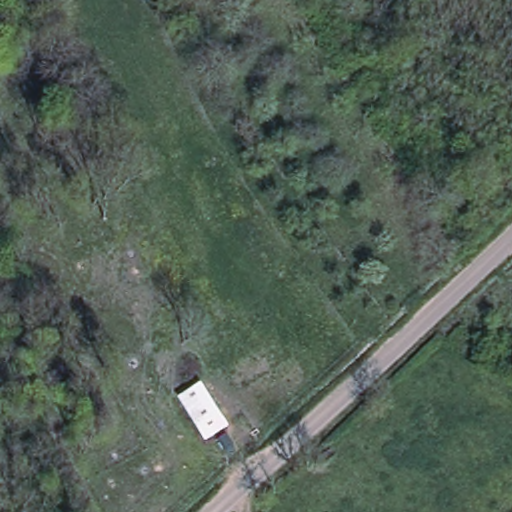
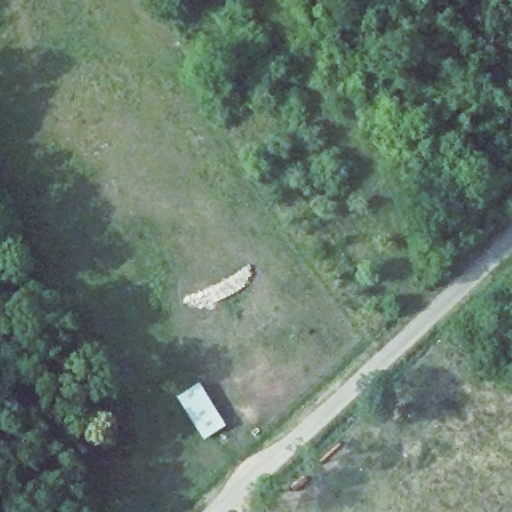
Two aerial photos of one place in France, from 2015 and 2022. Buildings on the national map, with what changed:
unchanged [(221,416),(203,428),(189,406),(208,395),(221,416)]

